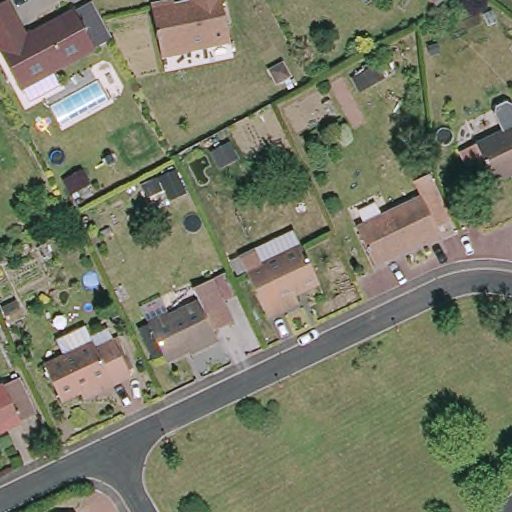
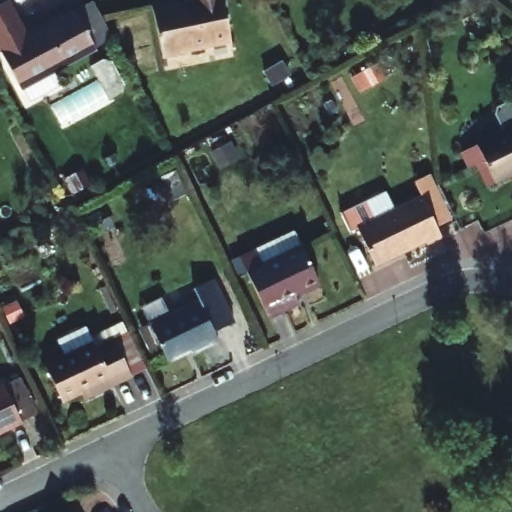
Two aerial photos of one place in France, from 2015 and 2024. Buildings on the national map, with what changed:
unchanged [(25,83),(0,39),(0,1),(1,0),(12,0),(27,30),(76,4),(97,44),(25,83)]
unchanged [(228,39),(208,43),(208,40),(185,46),(185,49),(162,54),(150,2),(162,0),(172,0),(173,3),(188,0),(220,0),(228,39)]
unchanged [(383,78),(367,86),(360,71),(376,64),(383,78)]
unchanged [(493,182),(475,144),(512,126),(512,173),(493,182)]
unchanged [(238,159),(219,169),(208,151),(230,141),(238,159)]
unchanged [(437,235),(420,197),(414,186),(432,177),(455,225),(437,235)]
unchanged [(170,201),(152,210),(142,190),(162,182),(170,201)]
unchanged [(425,245),(423,240),(374,265),(355,228),(420,197),(437,235),(440,239),(425,245)]
unchanged [(322,283),(297,295),(302,302),(272,317),(242,257),(297,231),(322,283)]
unchanged [(217,326),(197,336),(202,345),(175,358),(173,356),(150,367),(130,326),(151,316),(152,319),(181,306),(175,293),(196,282),(217,326)]
unchanged [(70,412),(53,375),(73,366),(67,355),(66,356),(62,353),(62,350),(63,347),(70,345),(72,347),(94,336),(99,347),(117,339),(122,348),(125,355),(131,352),(143,377),(138,380),(141,385),(122,395),(92,410),(88,403),(70,412)]
unchanged [(30,415),(0,430),(0,385),(12,380),(30,415)]

